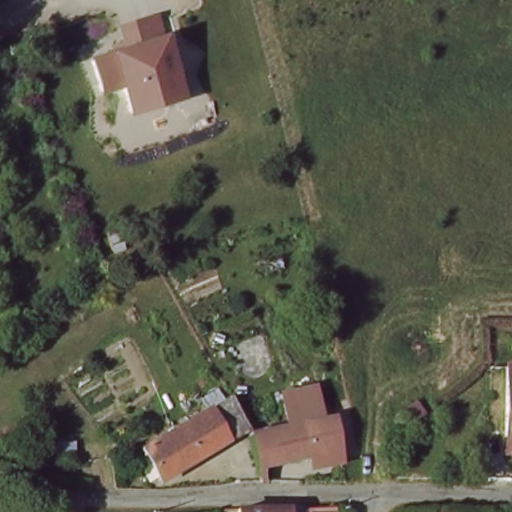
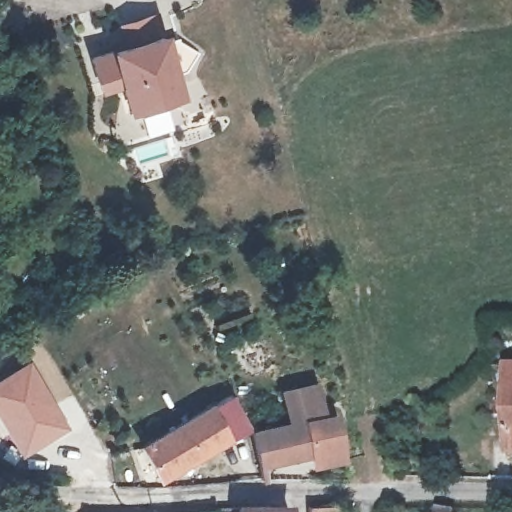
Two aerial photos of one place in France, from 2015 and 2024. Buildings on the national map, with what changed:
unchanged [(162,37),(179,98),(122,115),(117,92),(96,99),(81,55),(114,46),(106,26),(155,10),(162,37)]
new [(70,427),(20,456),(0,422),(0,375),(27,358),(70,427)]
unchanged [(245,420),(257,418),(279,415),(273,383),(313,380),(316,392),(319,408),(339,405),(350,455),(336,458),(332,450),(265,460),(245,420)]
unchanged [(274,476),(236,477),(234,435),(163,479),(137,441),(229,391),(245,420),(265,460),(274,476)]
unchanged [(507,445),(512,403),(512,446),(507,445)]
unchanged [(455,512),(438,512),(439,502),(455,503),(455,512)]
unchanged [(244,512),(288,510),(288,512),(244,512)]
unchanged [(304,512),(304,510),(336,510),(336,512),(304,512)]

